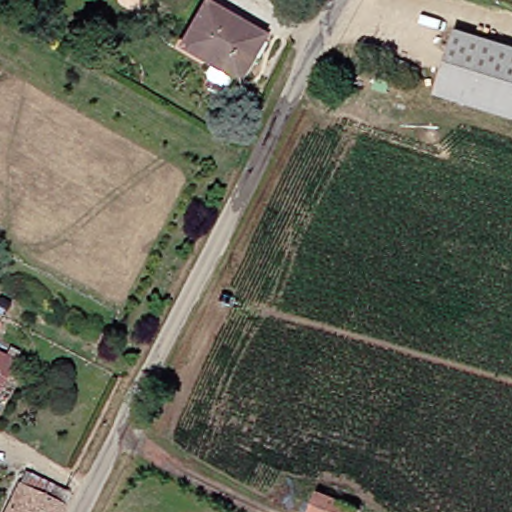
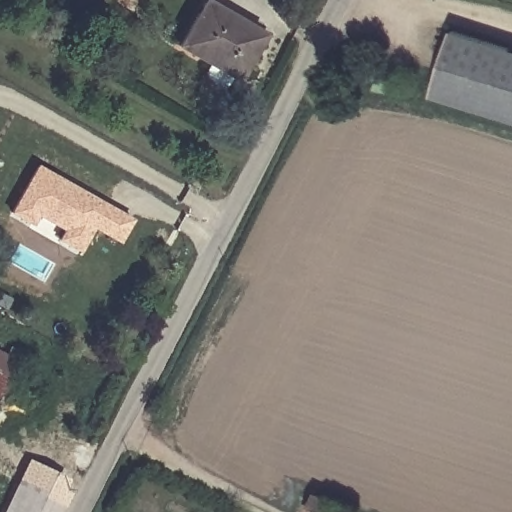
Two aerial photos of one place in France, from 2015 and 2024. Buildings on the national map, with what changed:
unchanged [(227,81),(225,83),(210,75),(209,73),(208,69),(213,60),(181,43),(203,1),(262,32),(240,74),(235,71),(230,81),(227,81)]
unchanged [(512,47),(512,119),(432,93),(453,28),(512,47)]
new [(93,230),(81,253),(57,241),(62,231),(39,217),(33,225),(11,213),(38,166),(134,220),(119,245),(93,230)]
unchanged [(16,354),(4,376),(0,382),(0,346),(16,354)]
unchanged [(26,474),(32,464),(75,487),(70,497),(62,512),(4,512),(26,474)]
unchanged [(315,488),(358,505),(355,512),(306,512),(315,488)]

